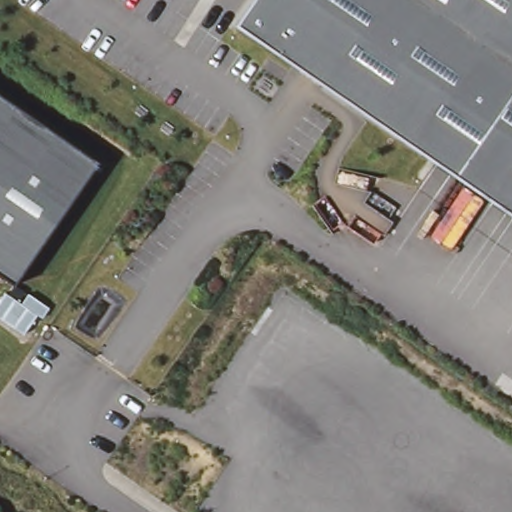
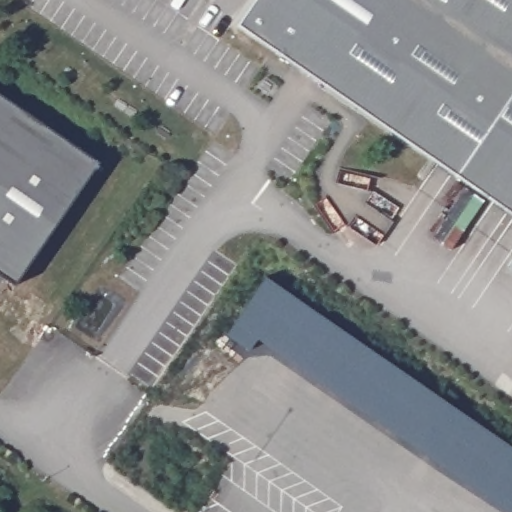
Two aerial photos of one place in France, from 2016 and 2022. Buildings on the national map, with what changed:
unchanged [(255,0),(512,0),(512,211),(241,22),(255,0)]
unchanged [(18,282),(0,270),(0,92),(102,161),(18,282)]
new [(510,512),(258,338),(250,351),(227,335),(266,277),(512,446),(512,512),(510,512)]

